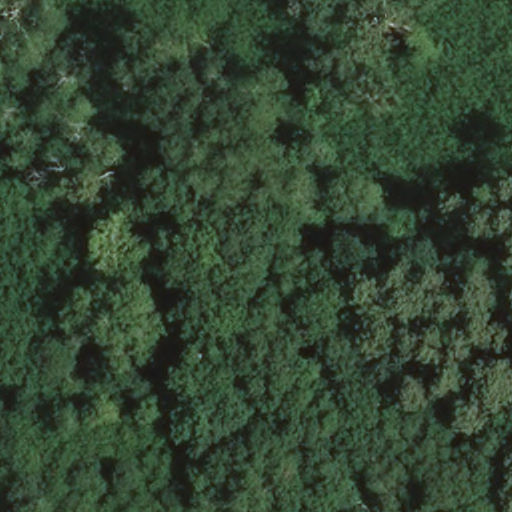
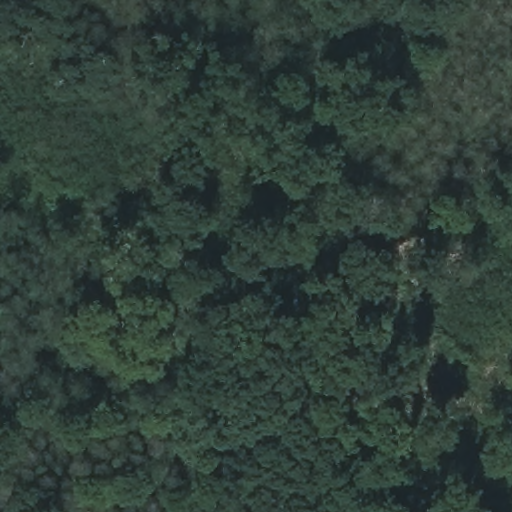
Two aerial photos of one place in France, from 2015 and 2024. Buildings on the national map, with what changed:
[]

